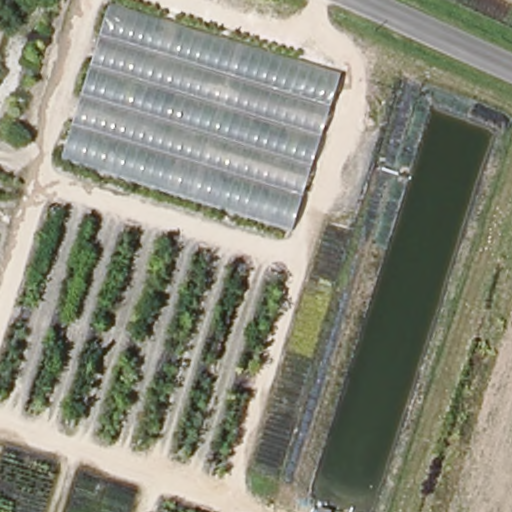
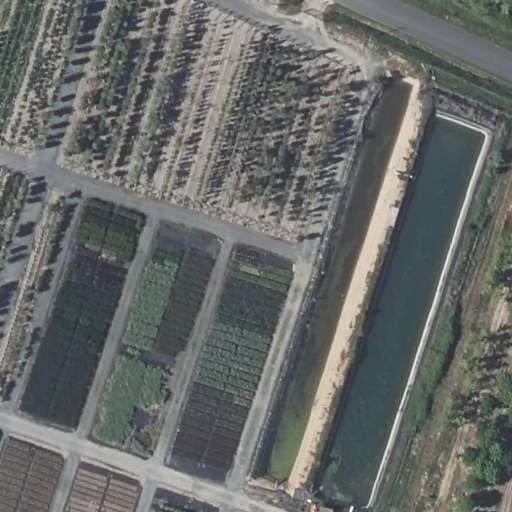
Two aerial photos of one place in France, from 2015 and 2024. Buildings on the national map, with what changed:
demolished [(67,161),(112,6),(347,77),(296,234),(67,161)]

